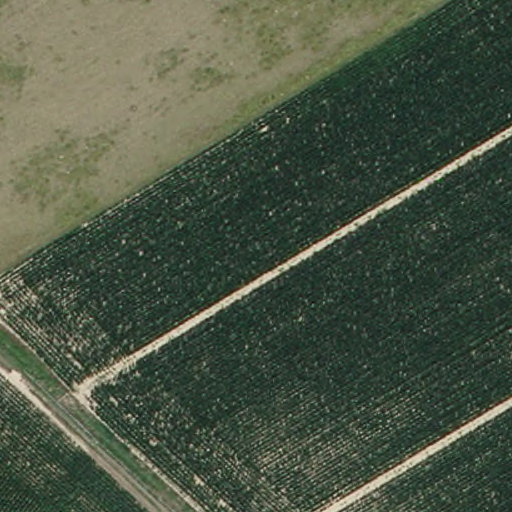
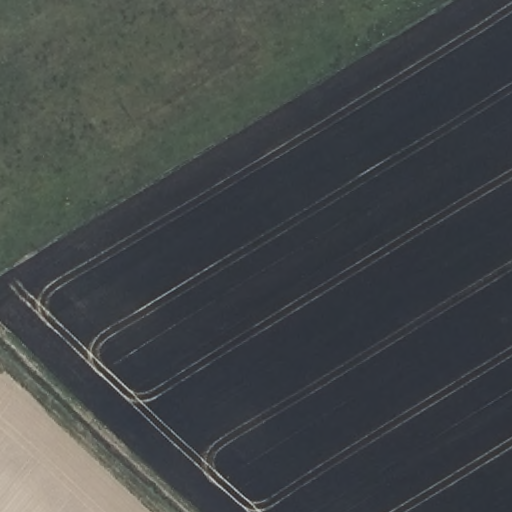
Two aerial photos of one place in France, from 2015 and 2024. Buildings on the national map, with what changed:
[]

